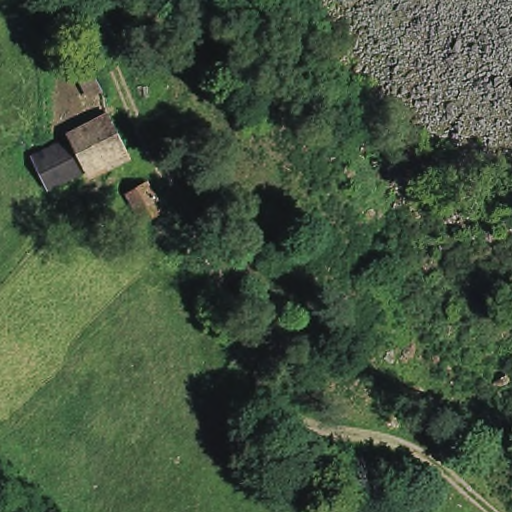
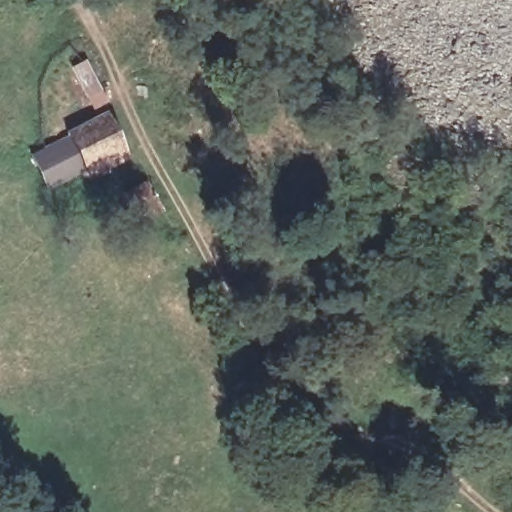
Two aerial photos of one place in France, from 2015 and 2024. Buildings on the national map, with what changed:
unchanged [(27,152),(104,109),(128,155),(48,194),(27,152)]

